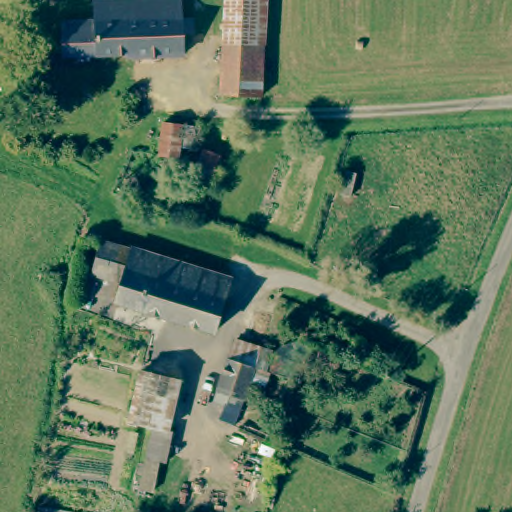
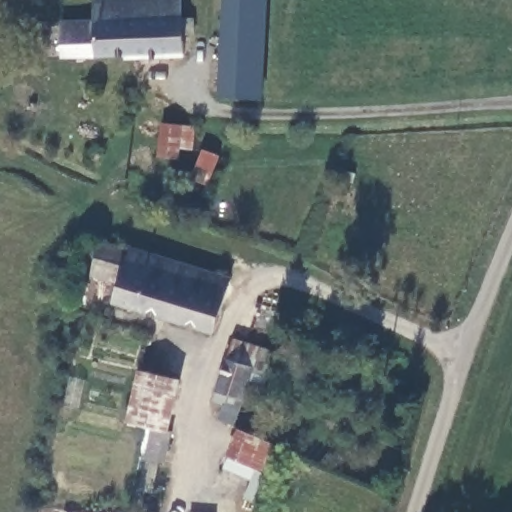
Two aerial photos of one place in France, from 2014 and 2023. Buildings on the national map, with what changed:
unchanged [(63,23),(95,21),(94,2),(95,2),(143,0),(182,0),(182,17),(196,17),(197,31),(183,32),(184,51),(128,55),(128,51),(63,53),(63,23)]
unchanged [(265,47),(224,44),(229,0),(269,0),(265,47)]
unchanged [(220,90),(224,44),(265,47),(262,95),(220,90)]
unchanged [(163,119),(196,124),(194,141),(160,136),(163,119)]
unchanged [(220,151),(209,181),(192,175),(203,145),(220,151)]
unchanged [(116,301),(121,281),(94,273),(102,245),(128,252),(130,247),(231,276),(216,330),(116,301)]
unchanged [(45,280),(47,278),(49,277),(51,277),(54,277),(56,278),(58,280),(59,283),(59,285),(59,289),(57,290),(55,292),(51,292),(48,292),(46,291),(45,290),(44,287),(44,284),(45,280)]
unchanged [(222,413),(225,403),(216,400),(231,355),(237,337),(262,345),(256,363),(237,421),(222,413)]
unchanged [(169,432),(164,464),(158,463),(153,493),(137,488),(143,458),(148,427),(127,419),(139,370),(179,379),(169,432)]

